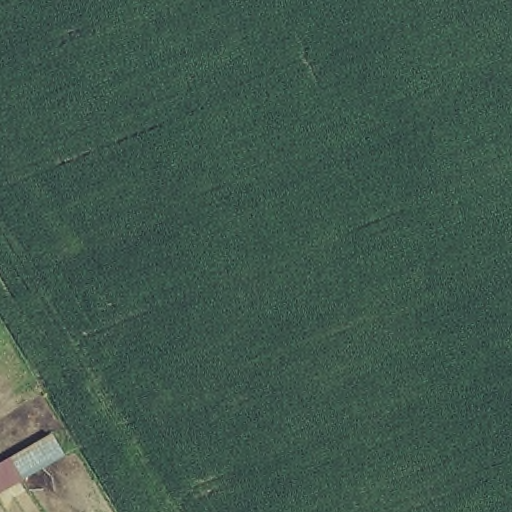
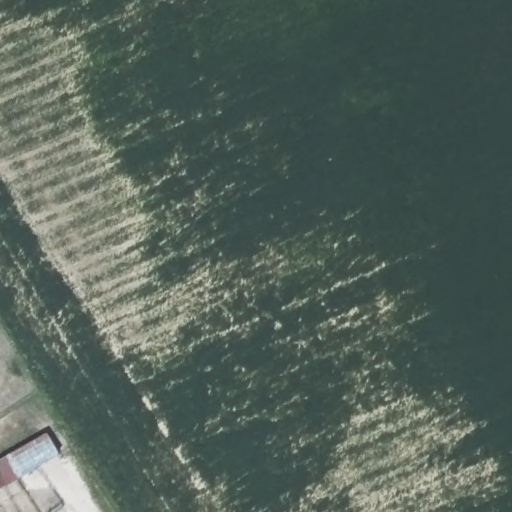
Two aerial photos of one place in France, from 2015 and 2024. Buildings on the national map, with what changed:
unchanged [(61,455),(0,490),(0,462),(49,434),(61,455)]

